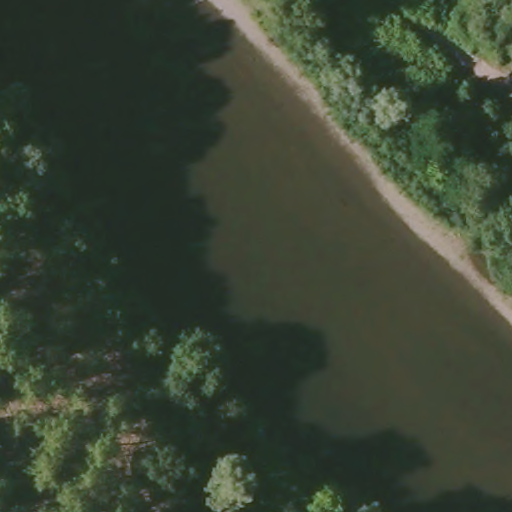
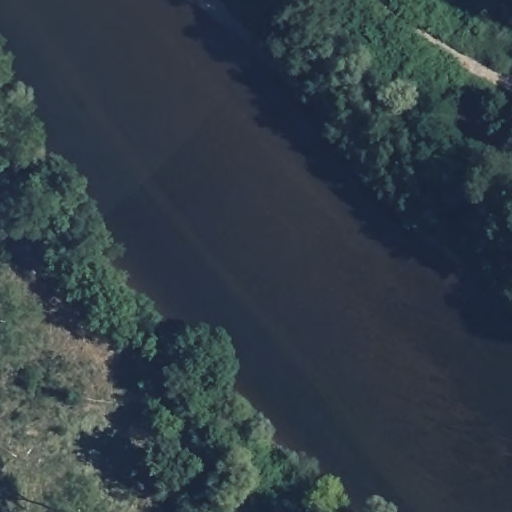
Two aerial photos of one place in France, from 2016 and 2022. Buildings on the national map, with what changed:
[]

